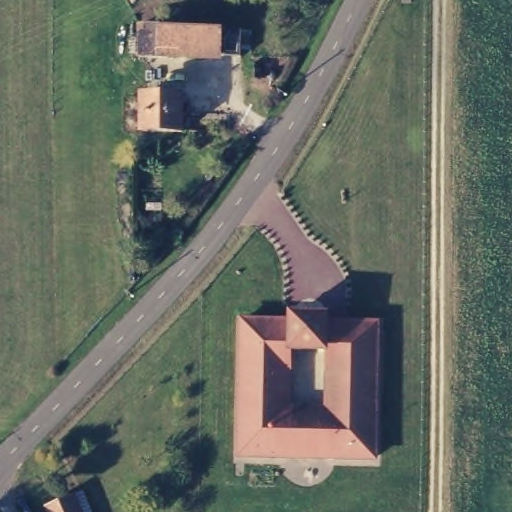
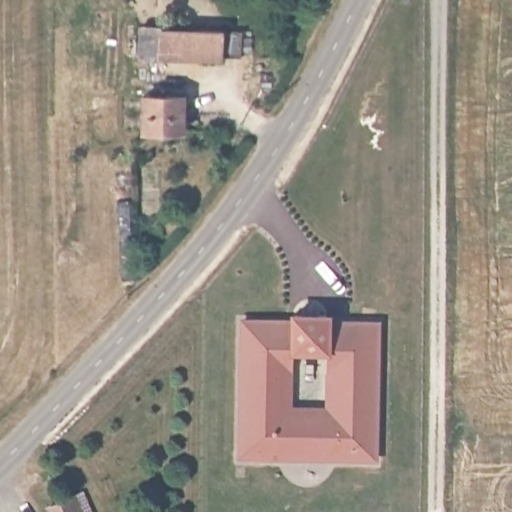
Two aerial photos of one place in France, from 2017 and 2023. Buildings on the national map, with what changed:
unchanged [(155,56),(156,28),(235,35),(234,63),(155,56)]
unchanged [(147,133),(150,98),(188,97),(190,134),(147,133)]
unchanged [(241,319),(291,319),(291,312),(331,311),(330,320),(377,322),(375,459),(236,457),(241,319)]
unchanged [(55,509),(91,495),(97,512),(57,512),(55,509)]

